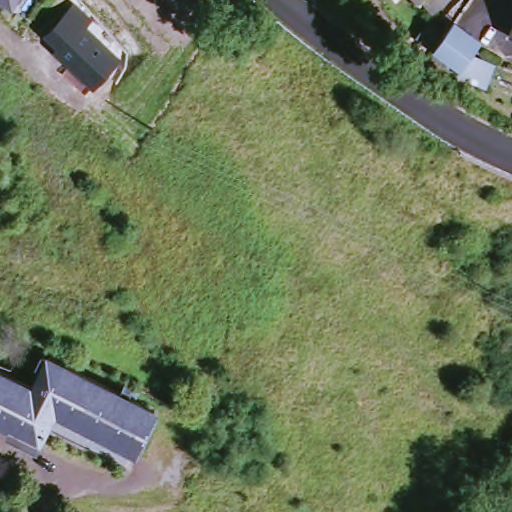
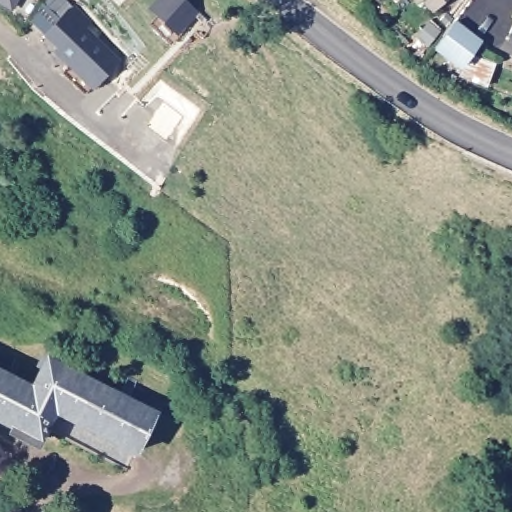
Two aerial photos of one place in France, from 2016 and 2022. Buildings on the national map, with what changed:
unchanged [(11,0),(15,0),(14,2),(11,0)]
new [(148,9),(155,0),(181,0),(196,15),(177,37),(148,9)]
unchanged [(427,14),(415,0),(412,4),(408,0),(443,0),(427,14)]
unchanged [(55,54),(58,48),(47,37),(77,6),(95,24),(90,31),(123,64),(95,92),(55,54)]
unchanged [(452,11),(470,23),(458,39),(453,45),(435,33),(452,11)]
unchanged [(510,37),(508,40),(502,35),(505,29),(510,32),(512,28),(512,38),(510,37)]
unchanged [(460,40),(472,44),(468,64),(455,62),(460,40)]
unchanged [(485,86),(465,83),(468,64),(493,64),(485,86)]
unchanged [(48,416),(30,446),(4,432),(7,425),(0,420),(0,370),(29,385),(45,360),(148,416),(127,456),(48,416)]

